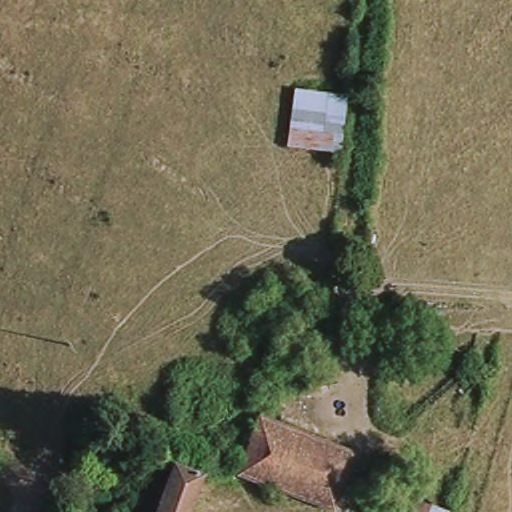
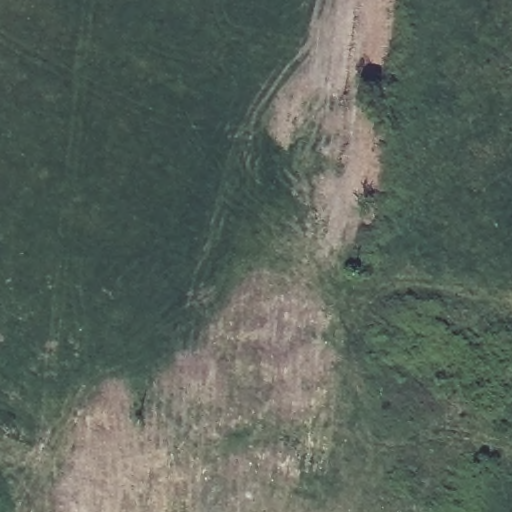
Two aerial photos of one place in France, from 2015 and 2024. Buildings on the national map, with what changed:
demolished [(344,99),(336,157),(288,149),(293,93),(344,99)]
demolished [(240,464),(247,468),(263,424),(354,461),(335,512),(325,512),(234,476),(240,464)]
demolished [(396,464),(410,472),(398,492),(383,484),(396,464)]
demolished [(171,467),(204,478),(191,512),(155,512),(171,467)]
demolished [(424,508),(436,512),(423,512),(424,508)]

